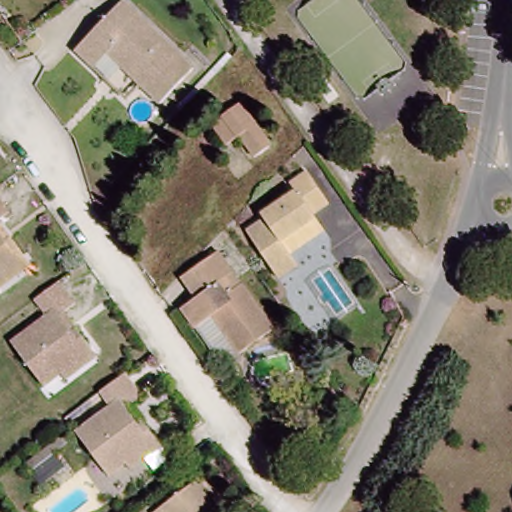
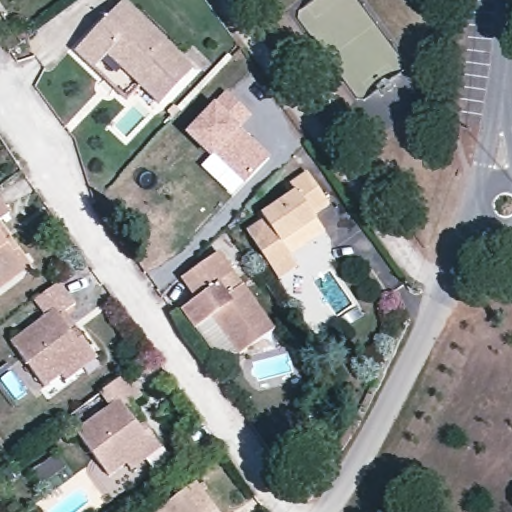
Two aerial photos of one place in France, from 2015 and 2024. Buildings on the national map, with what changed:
unchanged [(159,105),(105,56),(93,69),(72,51),(120,3),(193,69),(159,105)]
new [(227,94),(251,115),(237,131),(270,162),(247,187),(212,155),(209,159),(186,137),(225,95),(227,94)]
demolished [(240,103),(272,147),(257,158),(241,138),(237,140),(221,116),(240,103)]
unchanged [(290,256),(299,268),(280,281),(245,234),(262,223),(258,219),(293,196),(288,188),(303,177),(327,210),(310,222),(315,227),(320,235),(290,256)]
unchanged [(12,213),(0,224),(0,198),(12,213)]
unchanged [(1,281),(0,282),(0,237),(0,226),(11,240),(27,260),(33,267),(7,287),(1,281)]
unchanged [(173,281),(197,265),(207,278),(218,294),(238,281),(274,332),(236,356),(212,320),(196,328),(180,305),(187,300),(173,281)]
unchanged [(67,379),(63,375),(45,387),(12,345),(46,318),(33,301),(57,284),(75,305),(65,313),(90,346),(97,356),(67,379)]
unchanged [(143,462),(133,470),(127,465),(109,478),(75,435),(110,406),(98,392),(123,374),(140,395),(130,403),(143,420),(156,436),(163,446),(143,462)]
unchanged [(197,482),(220,512),(155,512),(163,506),(197,482)]

